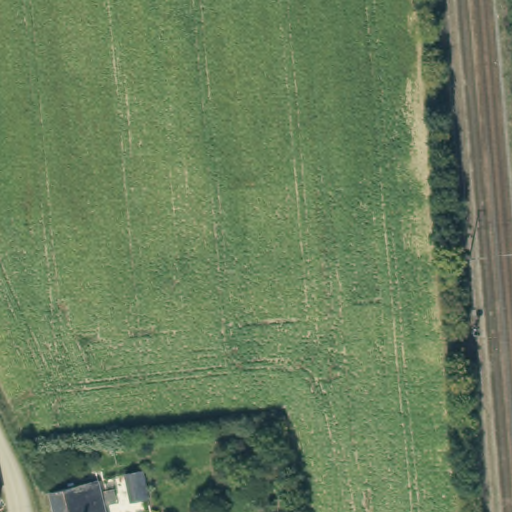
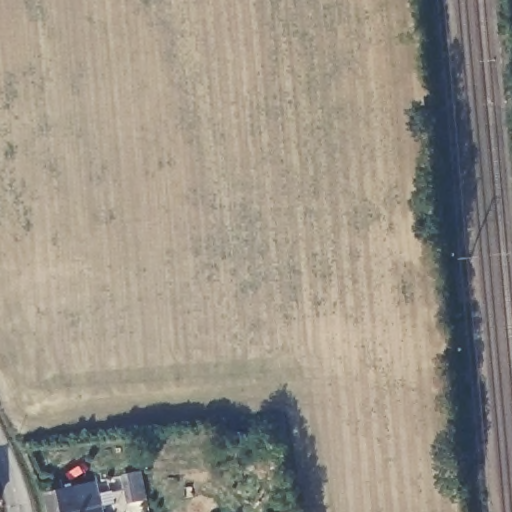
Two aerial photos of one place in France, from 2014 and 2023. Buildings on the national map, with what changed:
unchanged [(149,498),(132,502),(125,475),(142,471),(149,498)]
unchanged [(97,482),(105,512),(56,512),(51,493),(97,482)]

